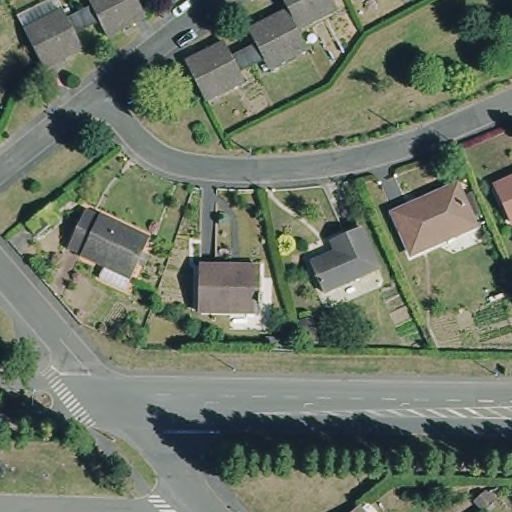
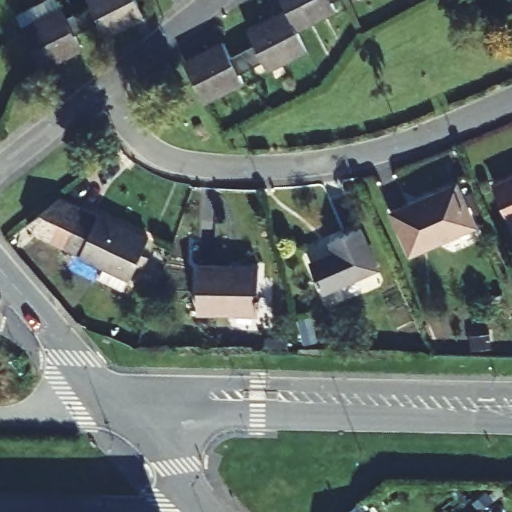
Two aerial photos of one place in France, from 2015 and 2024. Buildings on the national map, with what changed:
unchanged [(72,22),(80,36),(42,55),(22,15),(51,0),(62,0),(65,7),(77,0),(85,15),(72,22)]
unchanged [(78,0),(141,0),(143,5),(105,24),(97,9),(85,15),(77,0),(78,0)]
unchanged [(223,35),(231,50),(245,44),(257,37),(250,21),(286,2),(285,0),(333,0),(334,2),(295,21),(305,42),(270,61),(265,51),(251,58),(238,64),(242,74),(204,94),(200,87),(185,55),(203,44),(222,35),(223,35)]
unchanged [(507,216),(489,179),(512,168),(512,214),(507,216)]
unchanged [(477,220),(417,248),(397,207),(458,178),(477,220)]
unchanged [(111,260),(72,241),(91,203),(152,233),(133,271),(131,270),(125,283),(105,273),(111,260)]
unchanged [(34,225),(60,205),(68,216),(42,236),(34,225)]
unchanged [(325,288),(312,261),(337,250),(332,237),(362,224),(380,264),(325,288)]
unchanged [(262,289),(262,297),(259,298),(259,306),(197,306),(197,261),(259,261),(259,289),(262,289)]

